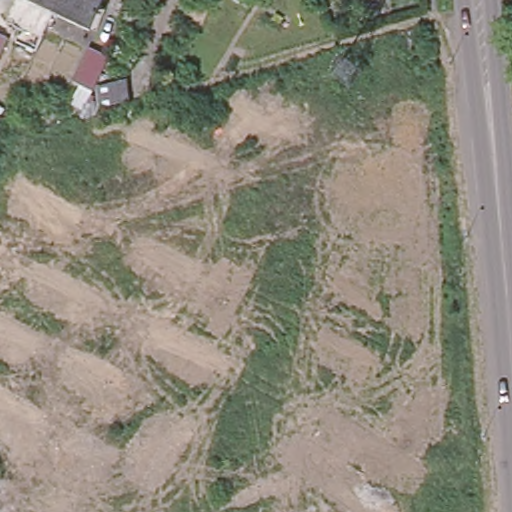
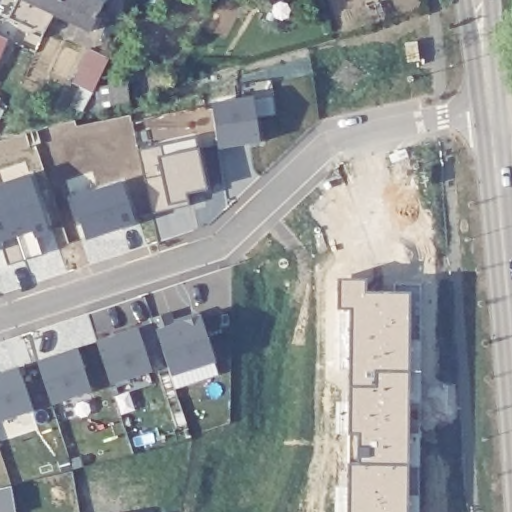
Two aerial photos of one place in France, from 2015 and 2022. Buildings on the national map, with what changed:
unchanged [(56,15),(50,12),(24,0),(104,0),(106,1),(91,32),(56,15)]
unchanged [(0,62),(0,35),(10,40),(0,62)]
new [(418,42),(420,61),(410,63),(407,44),(418,42)]
unchanged [(95,94),(75,84),(91,49),(112,59),(95,94)]
new [(213,105),(255,99),(261,143),(249,144),(249,142),(236,144),(237,146),(220,149),(213,105)]
new [(172,210),(153,214),(143,166),(180,158),(176,143),(197,138),(208,190),(188,194),(190,201),(190,206),(172,210)]
new [(50,232),(37,236),(43,255),(9,266),(2,248),(0,249),(0,187),(32,176),(50,232)]
new [(122,182),(135,224),(87,240),(80,219),(75,221),(69,198),(122,182)]
new [(365,292),(410,293),(408,512),(350,512),(350,463),(360,464),(360,434),(350,434),(352,309),(340,308),(340,280),(365,279),(365,292)]
new [(153,319),(170,313),(174,326),(183,323),(182,321),(200,315),(215,361),(171,376),(153,319)]
new [(110,338),(110,340),(122,337),(121,334),(154,323),(165,354),(149,359),(153,371),(111,385),(97,342),(110,338)]
new [(38,362),(55,356),(56,359),(67,355),(66,353),(78,349),(92,391),(52,405),(38,362)]
new [(6,372),(20,368),(33,411),(0,422),(0,378),(7,375),(6,372)]

